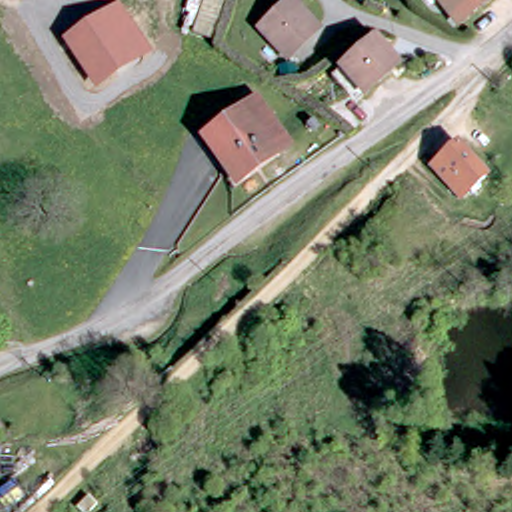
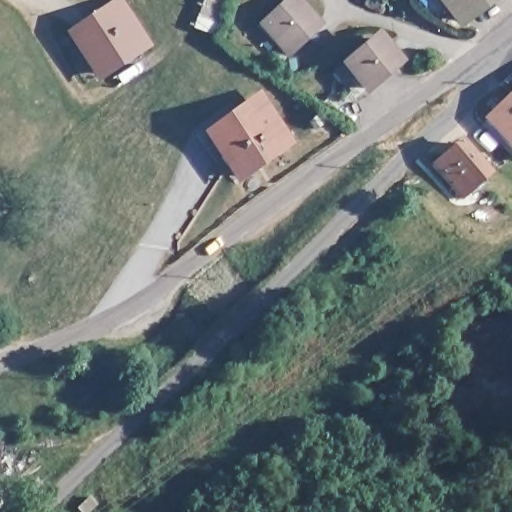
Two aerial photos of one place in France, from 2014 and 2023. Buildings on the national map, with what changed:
unchanged [(132,51),(118,28),(114,22),(89,36),(82,40),(92,59),(106,80),(97,85),(62,34),(114,0),(121,0),(152,47),(137,59),(132,51)]
unchanged [(322,20),(291,49),(266,21),(288,0),(303,0),(322,20)]
unchanged [(461,20),(448,5),(444,0),(485,0),(461,20)]
unchanged [(132,51),(138,60),(106,80),(92,59),(82,40),(89,36),(114,22),(118,28),(132,51)]
unchanged [(406,63),(367,97),(345,72),(383,38),(406,63)]
new [(480,122),(512,89),(512,152),(480,122)]
unchanged [(212,141),(261,101),(289,137),(240,176),(212,141)]
unchanged [(489,170),(471,187),(466,182),(461,187),(437,163),(460,140),(489,170)]

